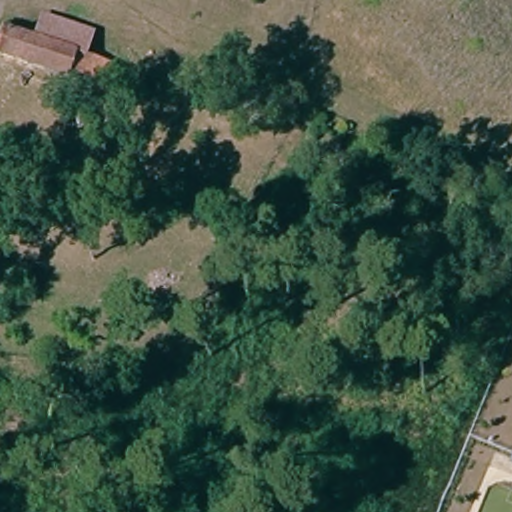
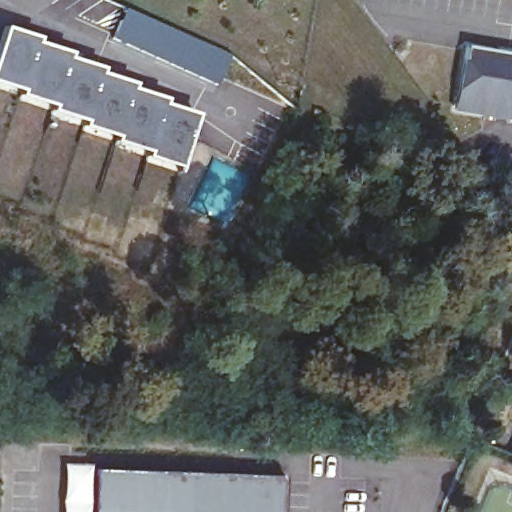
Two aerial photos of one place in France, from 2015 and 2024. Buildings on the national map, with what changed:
new [(229,55),(216,84),(113,37),(126,9),(229,55)]
new [(38,35),(36,41),(71,53),(70,57),(103,69),(101,73),(134,82),(133,87),(166,99),(164,104),(197,112),(180,164),(147,155),(149,150),(116,139),(116,134),(84,125),(86,117),(54,109),(55,104),(20,93),(22,89),(0,82),(0,42),(5,27),(38,35)]
demolished [(29,38),(78,54),(103,62),(95,87),(0,55),(0,28),(29,38)]
new [(512,47),(512,113),(455,104),(466,40),(512,47)]
unchanged [(512,461),(512,467),(510,466),(512,461)]
new [(91,464),(91,512),(62,512),(63,463),(91,464)]
new [(284,476),(283,512),(95,512),(95,468),(284,476)]

